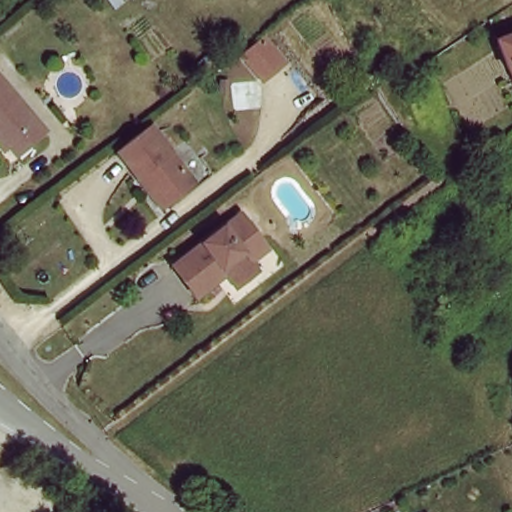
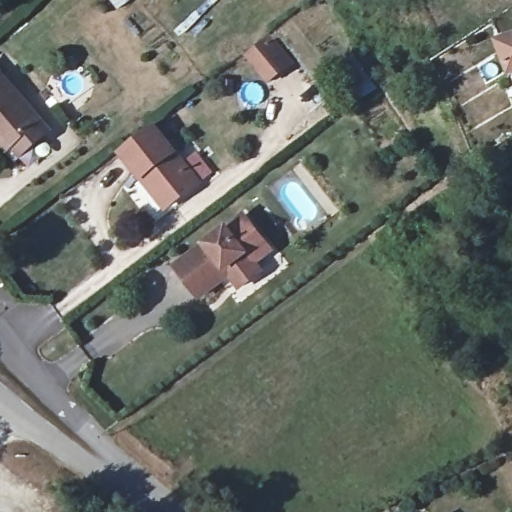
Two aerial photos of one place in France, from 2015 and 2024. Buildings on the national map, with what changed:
unchanged [(109,0),(131,0),(118,11),(109,0)]
unchanged [(265,85),(244,56),(272,35),(294,63),(265,85)]
unchanged [(512,42),(512,63),(505,45),(512,42)]
unchanged [(0,138),(0,57),(48,129),(31,141),(10,155),(0,138)]
unchanged [(143,176),(125,149),(158,126),(199,186),(171,205),(165,209),(143,176)]
unchanged [(270,251),(251,262),(257,272),(236,286),(226,272),(195,292),(174,261),(245,214),(262,240),(270,251)]

